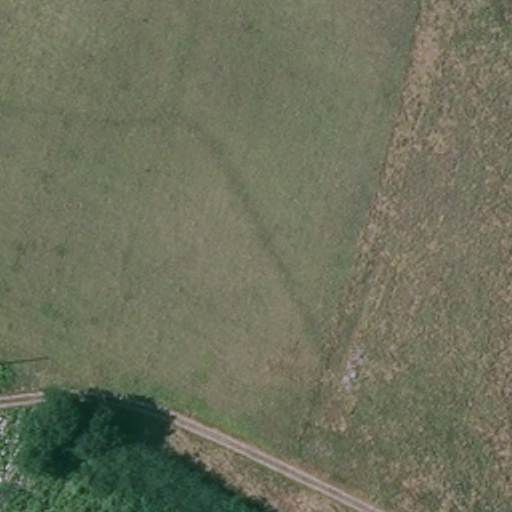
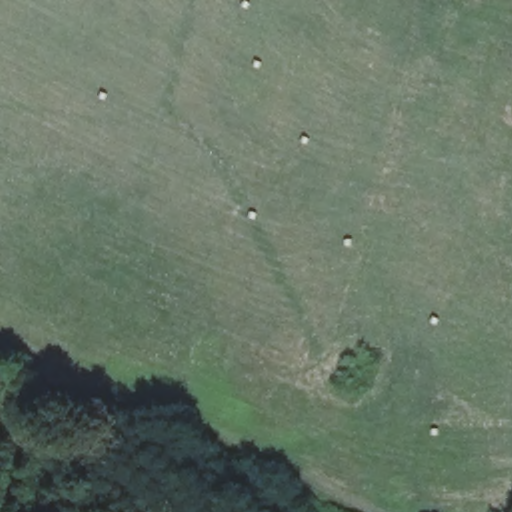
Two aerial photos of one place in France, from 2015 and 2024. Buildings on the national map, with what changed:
[]

